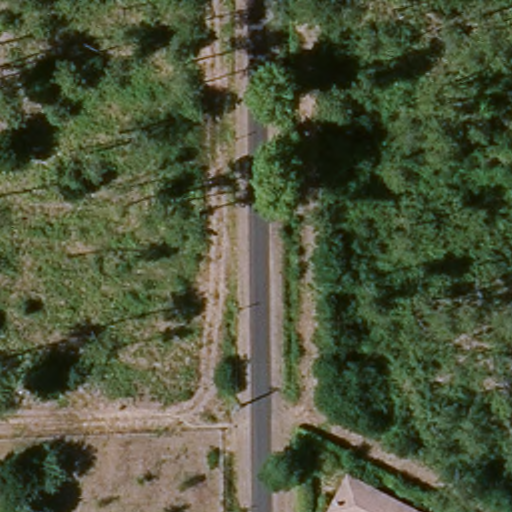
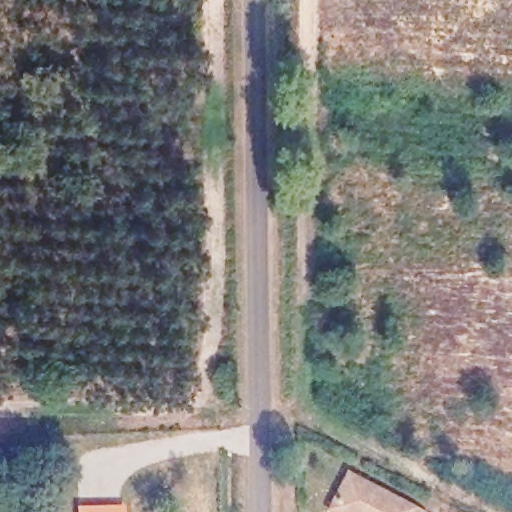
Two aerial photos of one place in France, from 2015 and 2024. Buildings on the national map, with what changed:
unchanged [(415,512),(326,512),(324,511),(345,475),(415,512)]
new [(124,505),(124,512),(75,512),(75,505),(124,505)]

